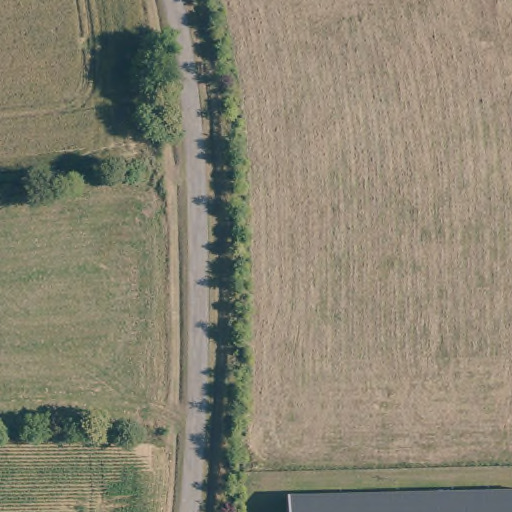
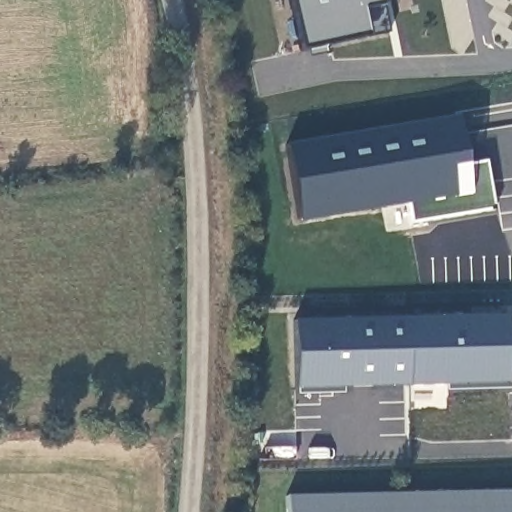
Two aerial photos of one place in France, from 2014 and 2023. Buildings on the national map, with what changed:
new [(389,35),(299,54),(287,0),(381,0),(389,35)]
new [(287,146),(457,115),(466,164),(486,162),(492,207),(412,222),(409,205),(300,223),(287,146)]
new [(506,320),(508,387),(409,390),(407,322),(506,320)]
new [(407,322),(409,390),(295,393),(293,325),(407,322)]
unchanged [(512,490),(512,512),(288,512),(287,495),(512,490)]

